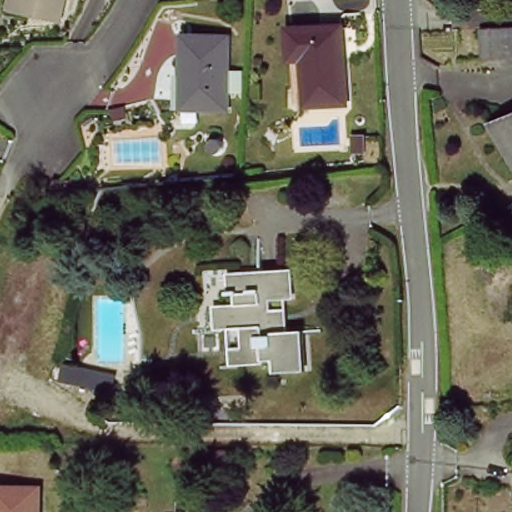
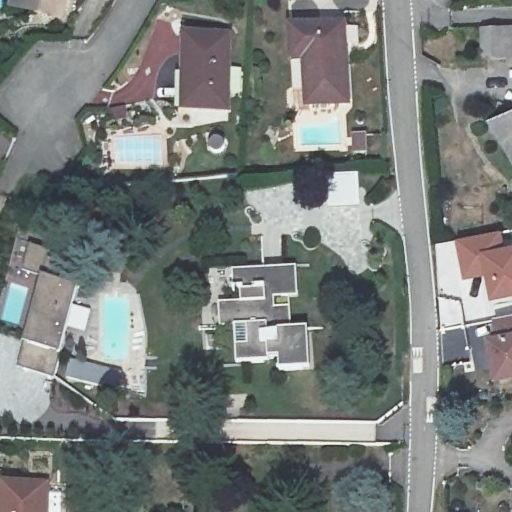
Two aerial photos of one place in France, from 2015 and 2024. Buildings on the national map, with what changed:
unchanged [(67,0),(63,16),(20,5),(21,0),(67,0)]
unchanged [(295,48),(294,21),(349,21),(353,98),(310,100),(298,100),(295,48)]
unchanged [(486,27),(512,25),(512,58),(487,60),(486,27)]
unchanged [(182,67),(183,30),(231,31),(229,103),(193,101),(181,100),(182,67)]
unchanged [(499,119),(512,114),(512,142),(499,119)]
new [(505,249),(512,248),(512,298),(494,302),(489,276),(466,280),(458,241),(504,233),(505,249)]
new [(31,245),(50,250),(43,276),(25,271),(31,245)]
unchanged [(241,323),(226,323),(226,298),(241,297),(241,267),(291,266),(291,296),(274,296),(273,309),(284,308),(283,332),(301,331),(301,372),(279,372),(279,360),(266,361),(267,366),(242,366),(241,323)]
new [(25,344),(41,279),(75,290),(59,354),(53,377),(18,367),(25,344)]
new [(498,381),(489,339),(500,336),(495,319),(512,317),(512,379),(498,381)]
unchanged [(3,483),(50,484),(50,512),(2,512),(3,483)]

